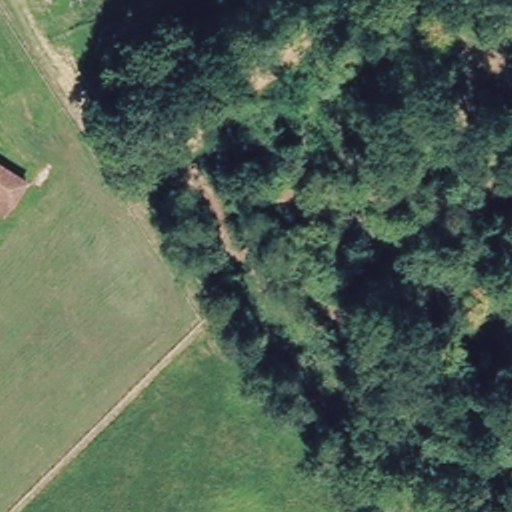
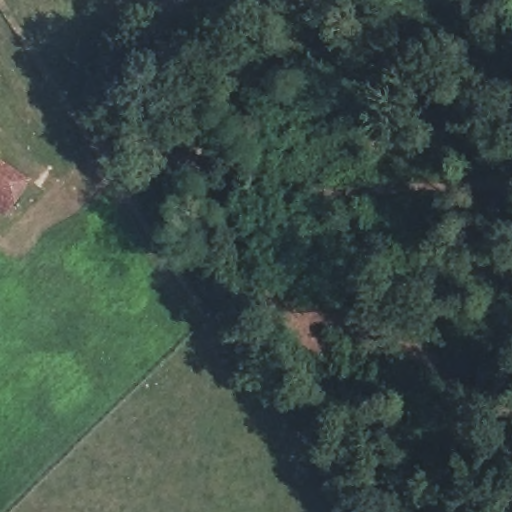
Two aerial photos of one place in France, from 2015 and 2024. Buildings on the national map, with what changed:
unchanged [(10,216),(0,210),(0,181),(24,197),(10,216)]

